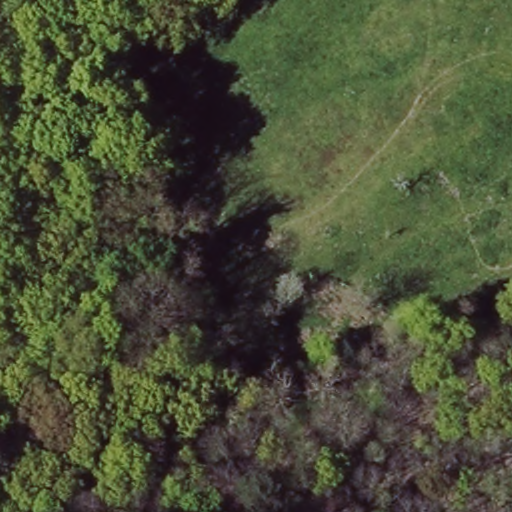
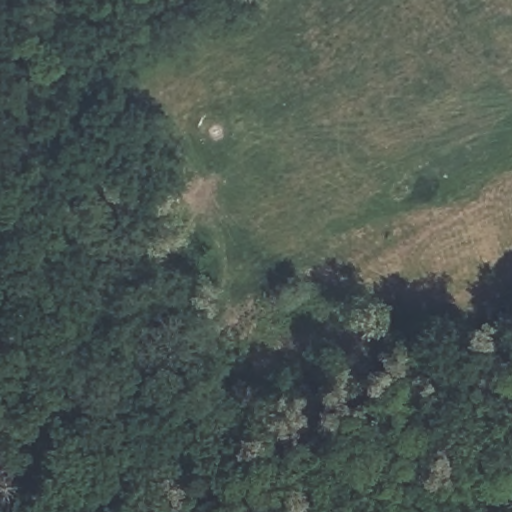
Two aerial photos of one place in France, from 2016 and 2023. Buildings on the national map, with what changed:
[]

